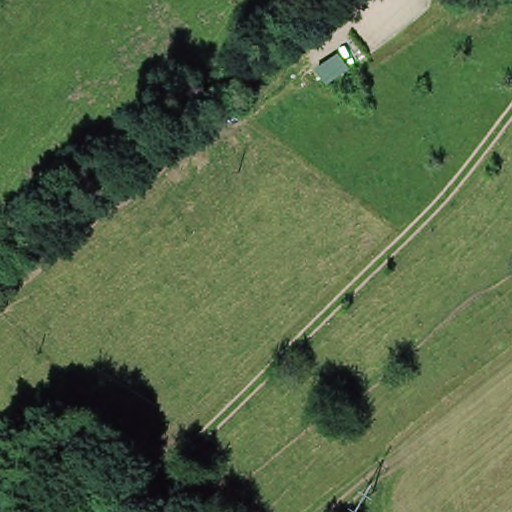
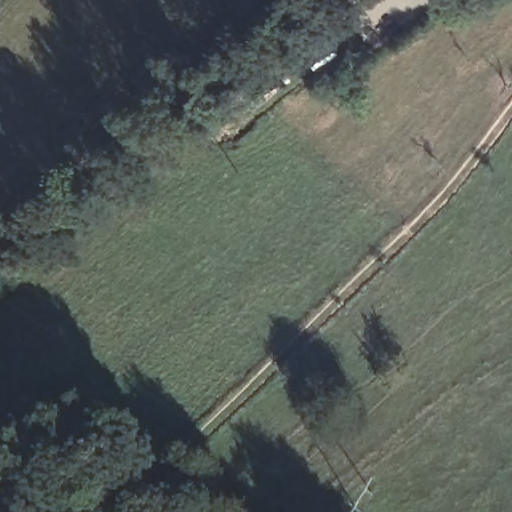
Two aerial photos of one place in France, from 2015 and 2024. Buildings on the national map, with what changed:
[]

